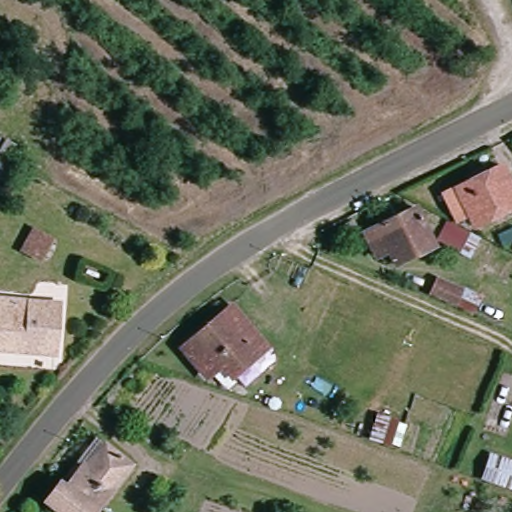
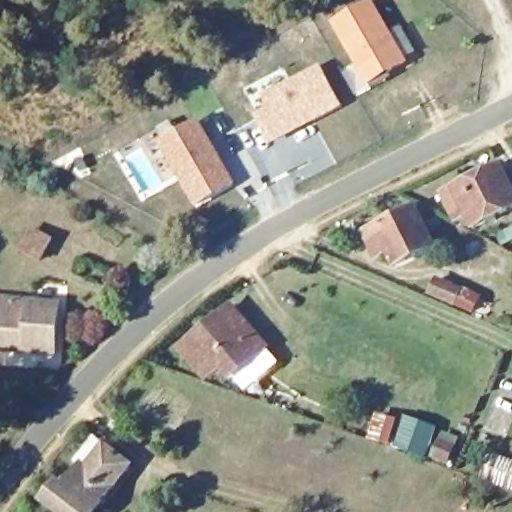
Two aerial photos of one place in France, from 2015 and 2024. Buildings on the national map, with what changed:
new [(367,0),(373,0),(391,30),(400,24),(417,52),(408,59),(409,62),(365,89),(329,23),(367,0)]
new [(268,107),(261,94),(320,63),(344,106),(272,144),(256,115),(268,107)]
new [(195,207),(158,143),(198,120),(235,183),(195,207)]
unchanged [(0,156),(10,161),(0,176),(0,156)]
unchanged [(473,223),(469,216),(457,222),(493,244),(492,246),(512,255),(512,261),(502,280),(477,270),(480,263),(441,243),(450,221),(441,187),(500,160),(512,182),(512,208),(473,223)]
unchanged [(434,244),(396,263),(390,249),(375,255),(363,229),(417,206),(434,244)]
unchanged [(55,268),(39,261),(46,248),(61,255),(55,268)]
unchanged [(485,318),(437,295),(445,278),(494,298),(485,318)]
unchanged [(49,287),(61,289),(60,303),(55,352),(0,349),(0,298),(46,301),(49,287)]
unchanged [(232,374),(221,360),(208,372),(182,343),(230,302),(254,331),(265,345),(232,374)]
new [(426,458),(369,440),(378,413),(402,421),(405,416),(437,427),(438,434),(458,442),(453,455),(430,446),(426,458)]
unchanged [(89,512),(66,512),(46,495),(61,477),(66,481),(84,460),(88,464),(106,442),(131,461),(89,512)]
unchanged [(488,454),(512,463),(512,487),(479,475),(480,474),(487,457),(488,454)]

